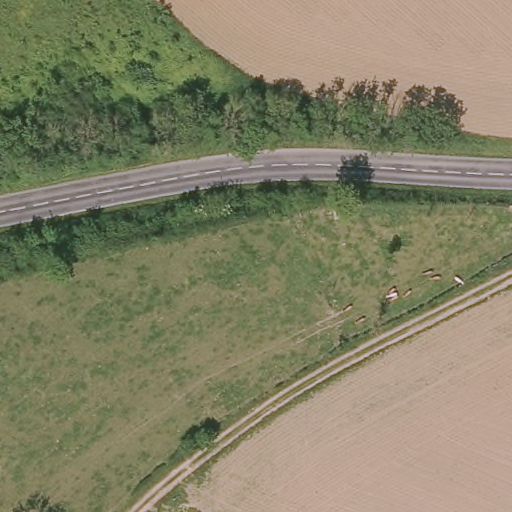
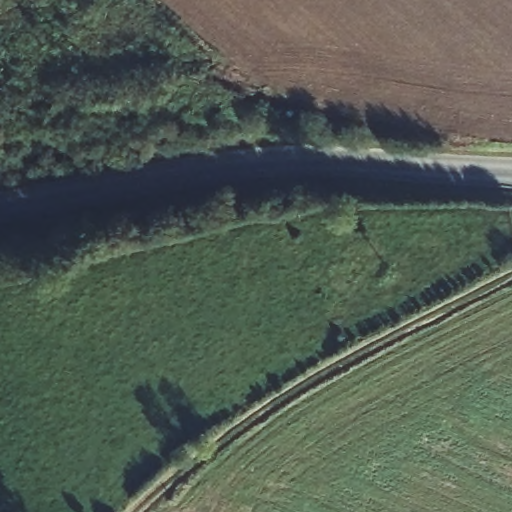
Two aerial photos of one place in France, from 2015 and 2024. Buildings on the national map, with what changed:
unchanged [(347,239),(325,245),(322,227),(343,223),(347,239)]

